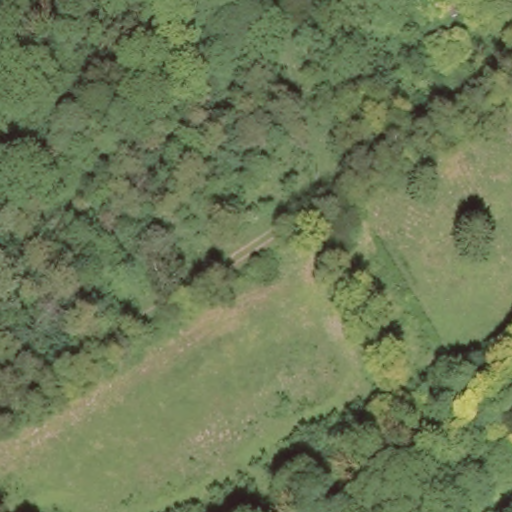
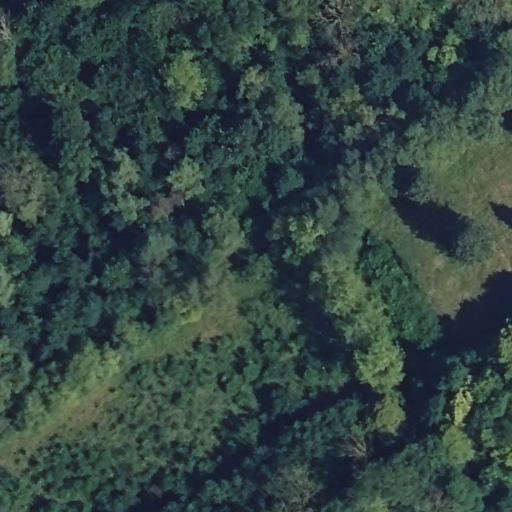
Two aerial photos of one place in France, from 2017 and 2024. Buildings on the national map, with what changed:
unchanged [(351,205),(362,221),(323,247),(311,230),(351,205)]

